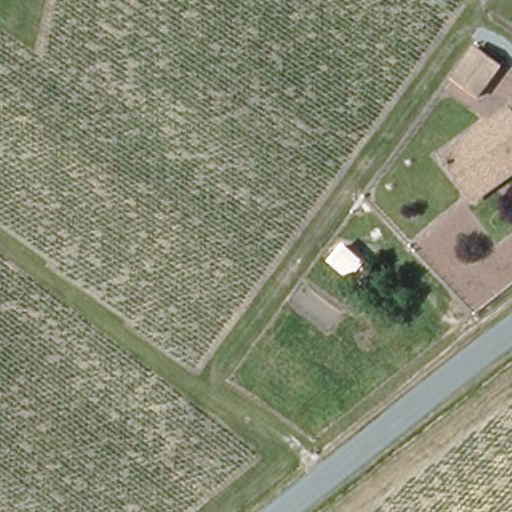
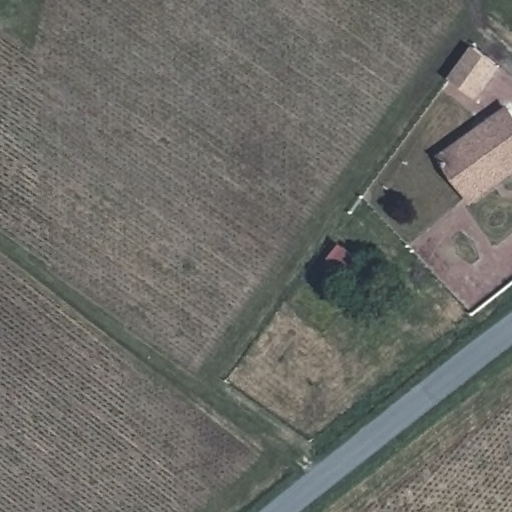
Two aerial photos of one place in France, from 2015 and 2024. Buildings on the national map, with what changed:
unchanged [(477,103),(451,84),(475,53),(500,72),(477,103)]
unchanged [(438,158),(504,110),(512,121),(512,172),(470,201),(465,193),(438,158)]

